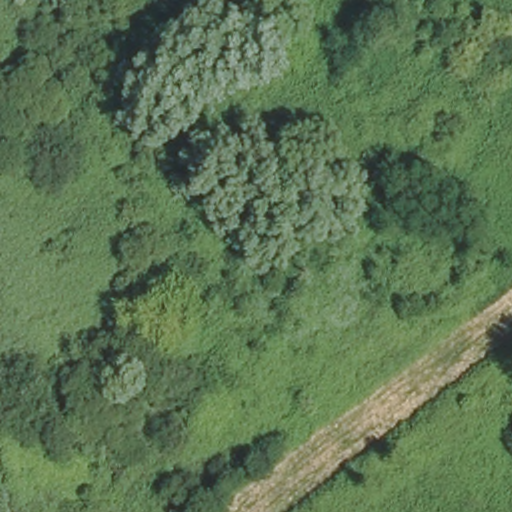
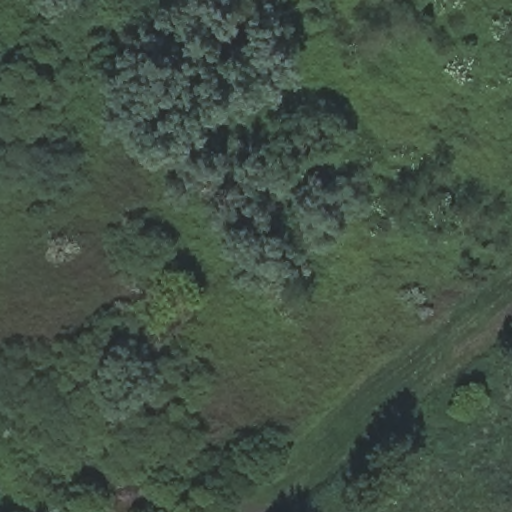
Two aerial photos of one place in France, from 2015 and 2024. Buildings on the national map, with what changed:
[]

